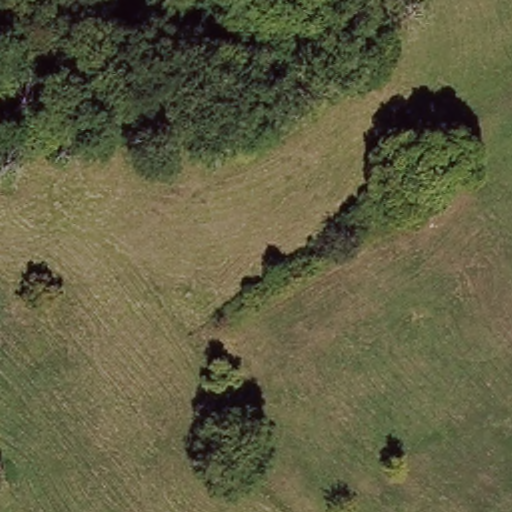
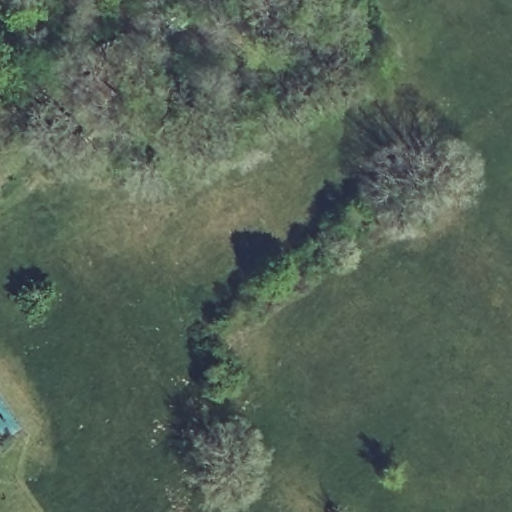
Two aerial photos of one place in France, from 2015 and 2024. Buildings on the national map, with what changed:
[]

